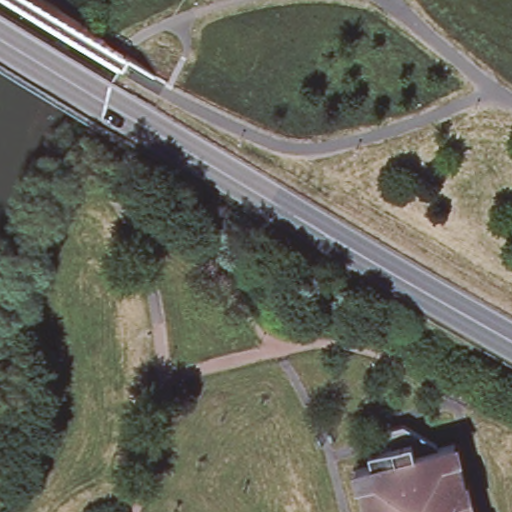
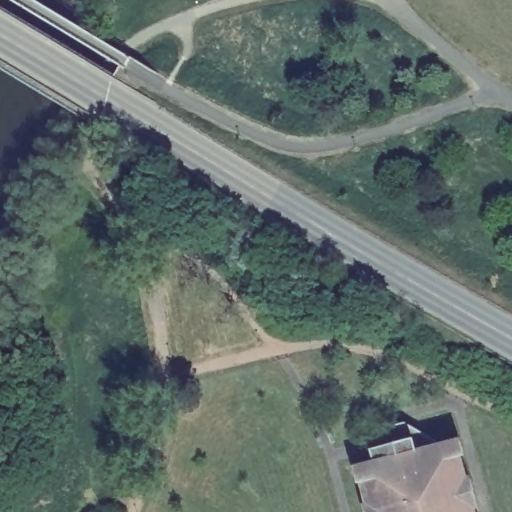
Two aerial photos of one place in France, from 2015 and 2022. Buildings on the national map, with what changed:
unchanged [(382,461),(379,448),(397,444),(392,427),(407,422),(440,441),(441,445),(458,441),(476,512),(371,512),(360,467),(382,461)]

